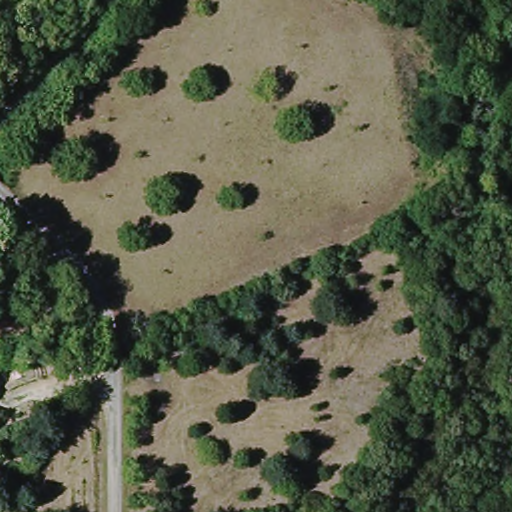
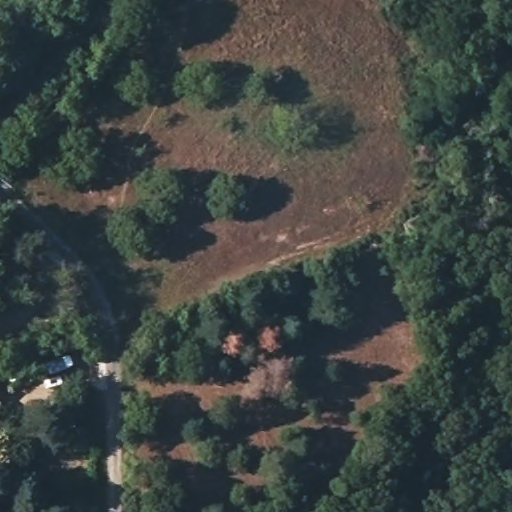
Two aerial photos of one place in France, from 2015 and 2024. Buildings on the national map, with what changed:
unchanged [(406,226),(428,211),(434,225),(409,240),(406,226)]

